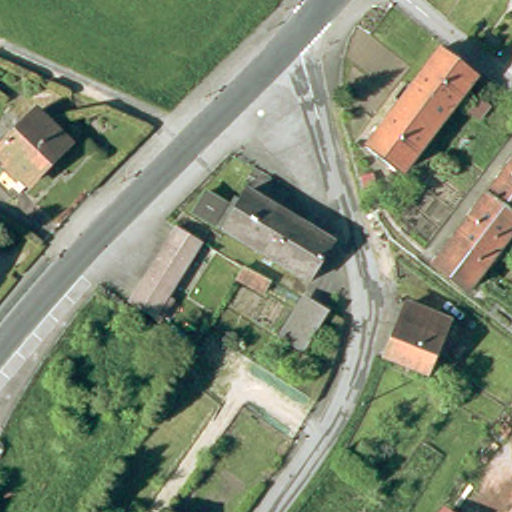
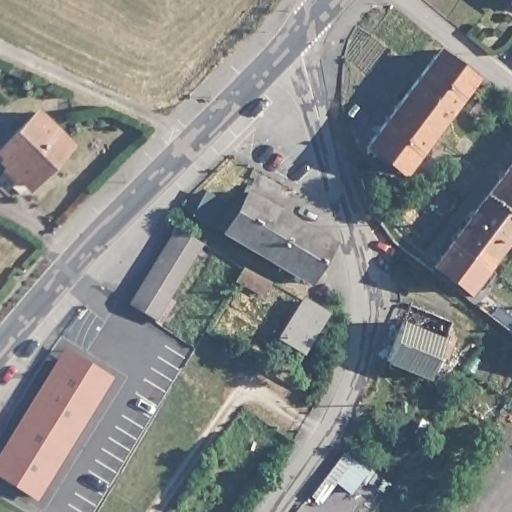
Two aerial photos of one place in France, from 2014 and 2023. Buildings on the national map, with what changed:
unchanged [(392,166),(390,169),(366,150),(371,144),(436,56),(441,51),(466,70),(465,72),(474,80),(472,84),(406,170),(403,175),(392,166)]
unchanged [(0,191),(0,177),(4,173),(9,169),(0,160),(0,149),(36,113),(70,146),(29,188),(14,204),(0,191)]
unchanged [(512,164),(512,176),(507,171),(512,164)]
unchanged [(488,195),(507,171),(512,176),(512,213),(488,195)]
unchanged [(488,195),(512,213),(512,233),(504,244),(470,219),(488,195)]
unchanged [(230,211),(216,232),(196,220),(210,199),(230,211)]
unchanged [(226,239),(250,199),(333,247),(309,287),(226,239)]
unchanged [(453,241),(470,219),(504,244),(486,266),(453,241)]
unchanged [(131,305),(181,230),(204,245),(154,322),(131,305)]
unchanged [(468,290),(434,265),(453,241),(486,266),(468,290)]
unchanged [(246,269),(272,283),(265,296),(238,281),(246,269)]
unchanged [(401,322),(409,305),(451,323),(447,332),(455,337),(445,358),(437,355),(427,378),(387,361),(387,358),(401,322)]
unchanged [(284,345),(307,310),(308,309),(326,321),(302,357),(284,345)]
new [(67,346),(116,378),(41,501),(0,476),(0,455),(67,346)]
new [(342,457),(365,472),(354,488),(340,478),(320,505),(311,498),(342,457)]

